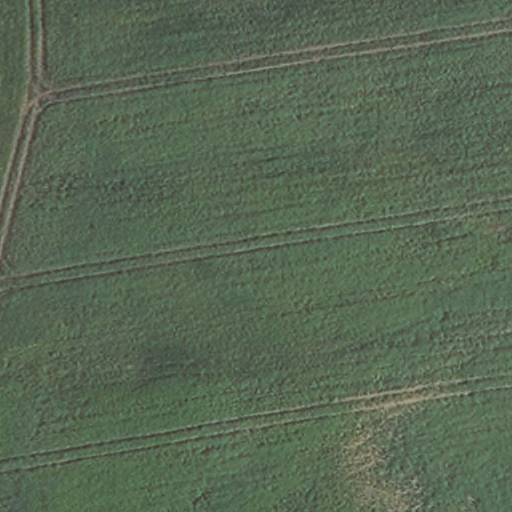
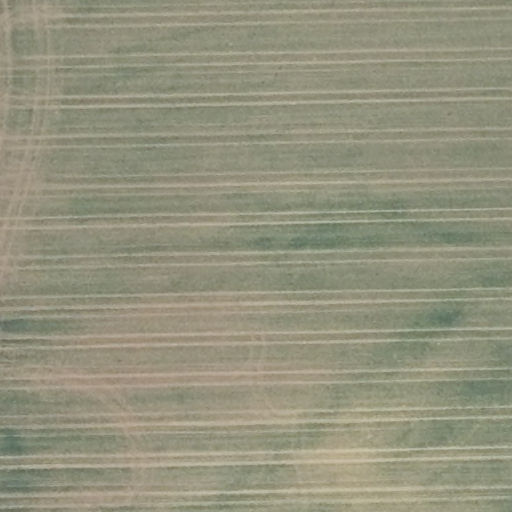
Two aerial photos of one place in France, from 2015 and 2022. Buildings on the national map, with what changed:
[]

